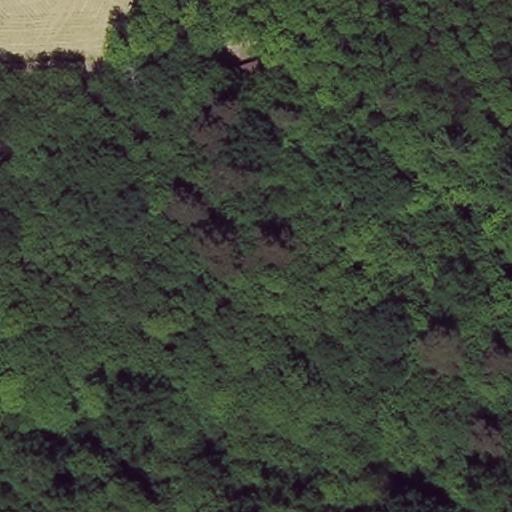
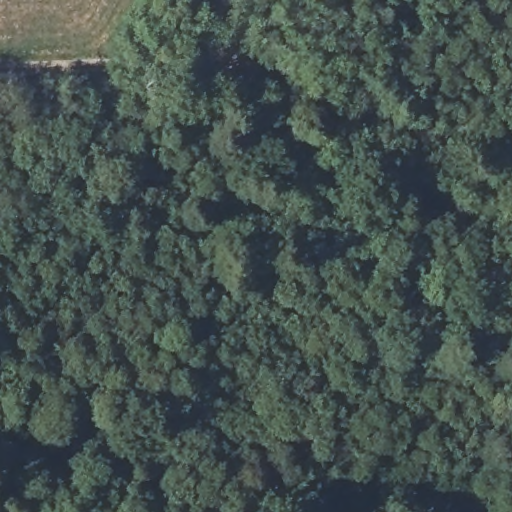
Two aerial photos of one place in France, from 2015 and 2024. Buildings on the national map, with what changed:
unchanged [(259,76),(229,85),(223,70),(253,57),(259,76)]

